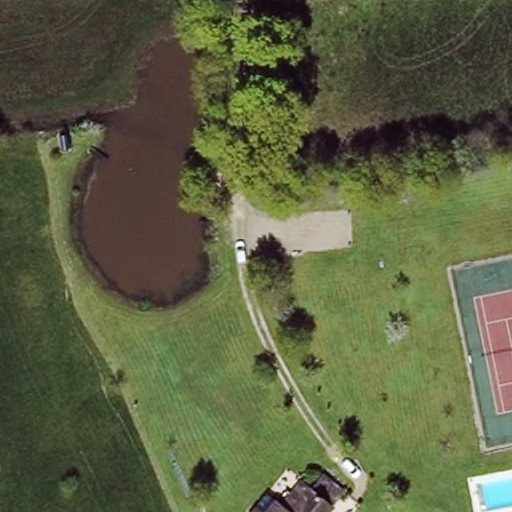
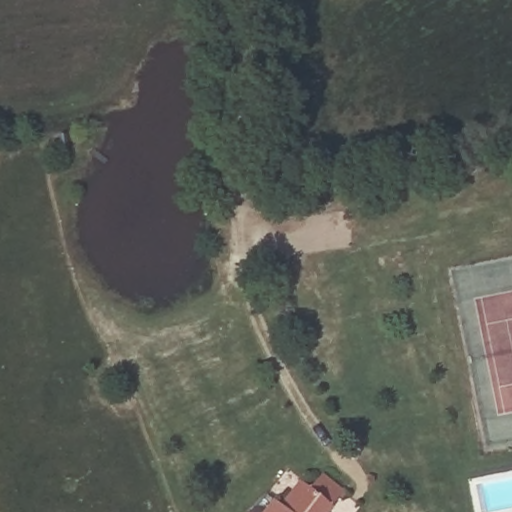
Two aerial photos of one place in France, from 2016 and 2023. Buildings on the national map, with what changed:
unchanged [(280,508),(300,481),(312,490),(321,476),(337,488),(324,507),(329,510),(327,512),(249,512),(262,494),(280,508)]

